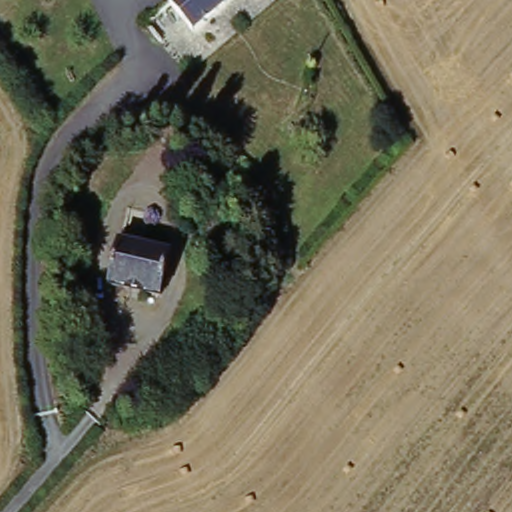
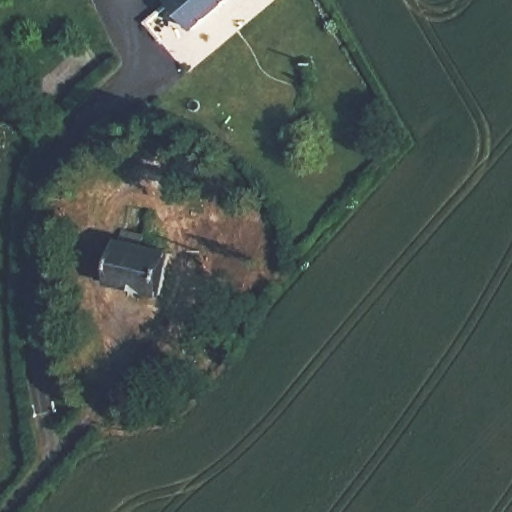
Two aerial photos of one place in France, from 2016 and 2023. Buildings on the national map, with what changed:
unchanged [(143,0),(231,0),(174,49),(150,24),(135,7),(143,0)]
unchanged [(122,234),(143,239),(141,250),(170,257),(161,300),(110,288),(120,245),(122,234)]

